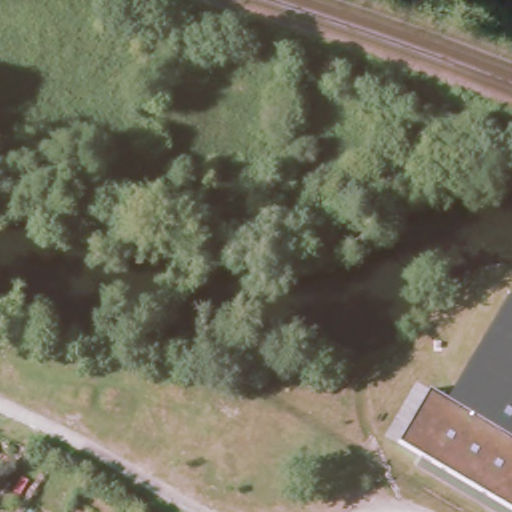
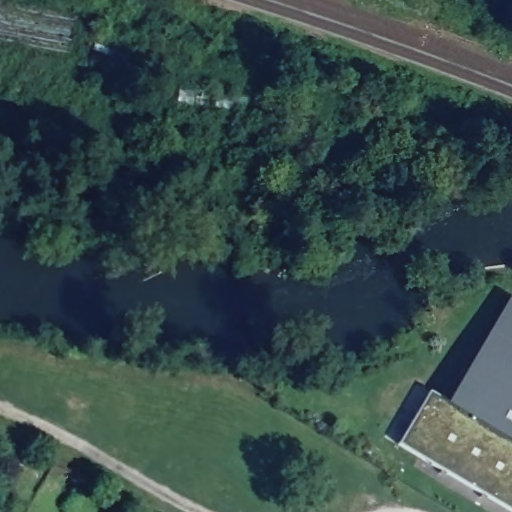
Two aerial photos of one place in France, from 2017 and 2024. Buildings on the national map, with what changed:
unchanged [(512,297),(512,438),(447,400),(508,295),(512,297)]
unchanged [(400,442),(430,390),(447,400),(512,438),(512,510),(400,442)]

